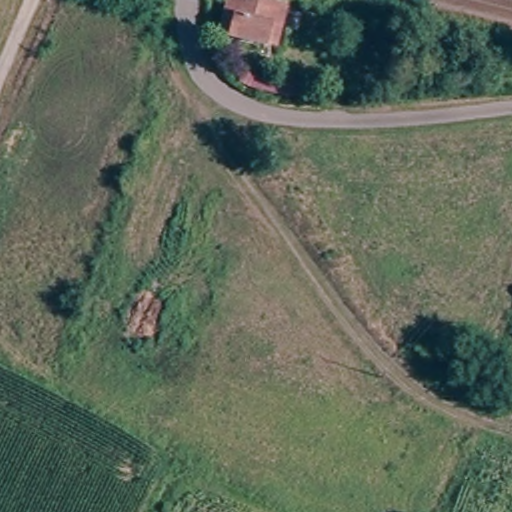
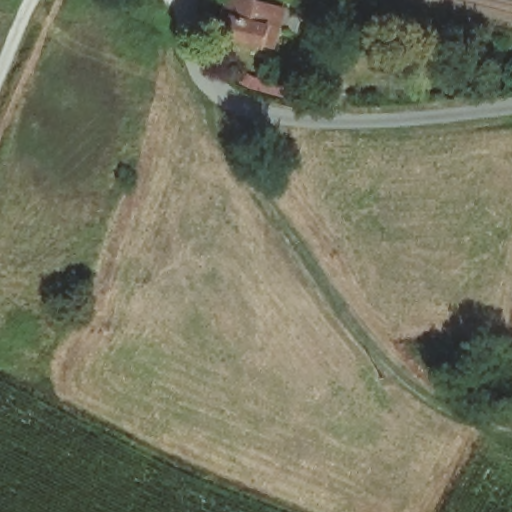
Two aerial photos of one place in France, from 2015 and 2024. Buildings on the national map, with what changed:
unchanged [(273,51),(264,48),(219,36),(229,0),(231,0),(242,3),(244,1),(272,9),(285,12),(273,51)]

